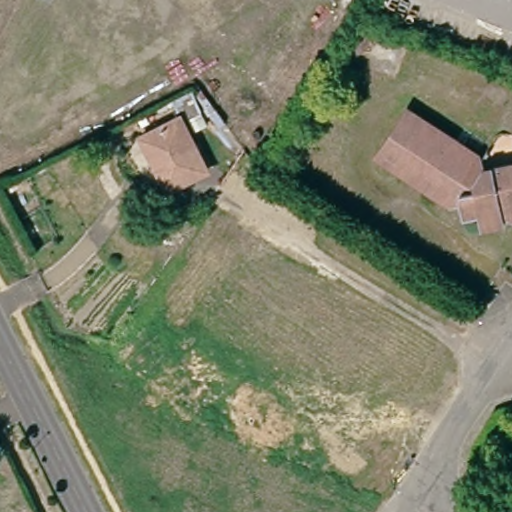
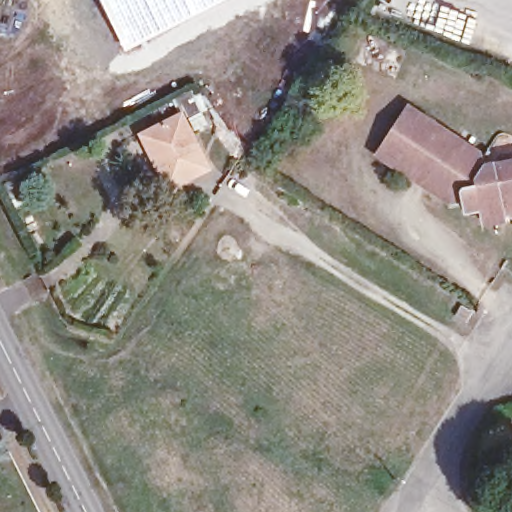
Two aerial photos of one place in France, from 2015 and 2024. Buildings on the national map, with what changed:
new [(124,52),(97,0),(229,0),(124,52)]
unchanged [(178,112),(204,161),(166,181),(139,133),(178,112)]
unchanged [(505,213),(491,217),(493,224),(481,223),(478,215),(463,215),(460,205),(452,205),(378,159),(406,112),(478,157),(484,169),(512,165),(512,224),(508,222),(505,213)]
unchanged [(459,299),(468,306),(463,312),(462,311),(461,312),(453,306),(459,299)]

